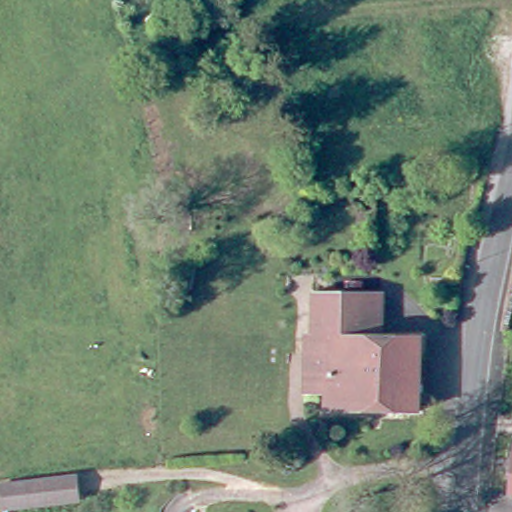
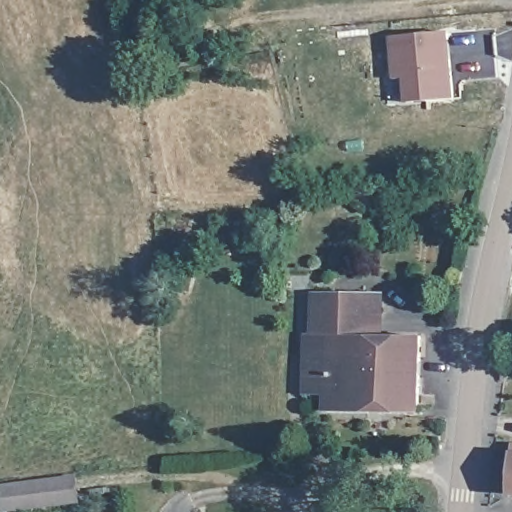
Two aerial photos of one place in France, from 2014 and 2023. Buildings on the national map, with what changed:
new [(403,79),(393,80),(390,36),(450,32),(455,99),(405,103),(403,79)]
unchanged [(368,293),(387,293),(386,336),(426,337),(424,412),(331,412),(331,393),(332,338),(319,338),(319,337),(319,293),(368,293)]
unchanged [(332,338),(331,393),(312,393),(313,337),(319,337),(319,338),(332,338)]
unchanged [(76,478),(79,503),(3,512),(1,487),(76,478)]

